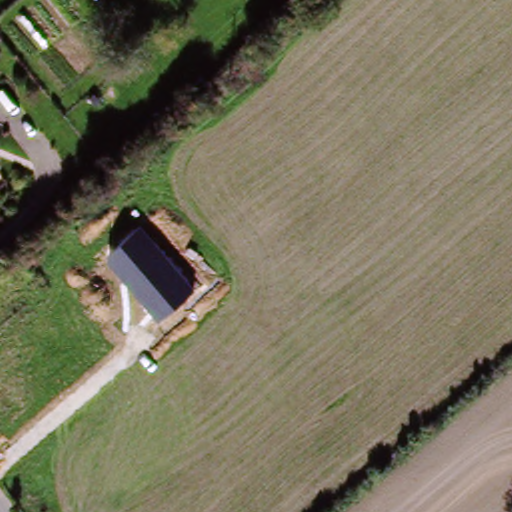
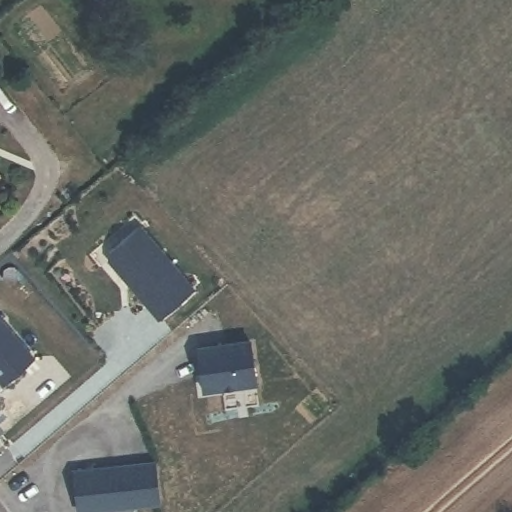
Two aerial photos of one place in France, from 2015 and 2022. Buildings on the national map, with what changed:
unchanged [(0,171),(0,168),(2,170),(0,171)]
unchanged [(142,225),(197,287),(158,320),(105,256),(142,225)]
new [(5,388),(0,382),(0,321),(35,362),(5,388)]
new [(252,343),(257,386),(205,393),(200,351),(252,343)]
new [(158,464),(163,503),(86,512),(81,512),(77,473),(158,464)]

